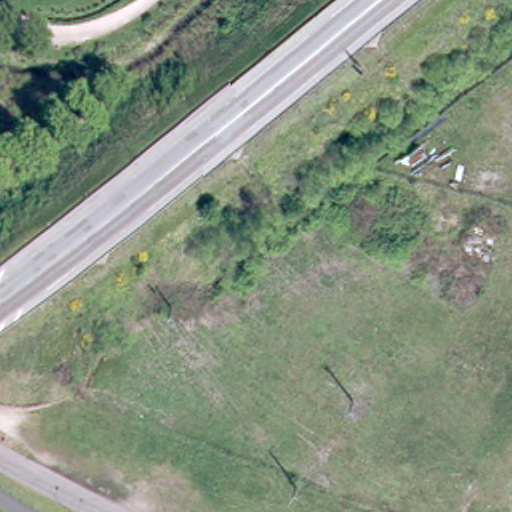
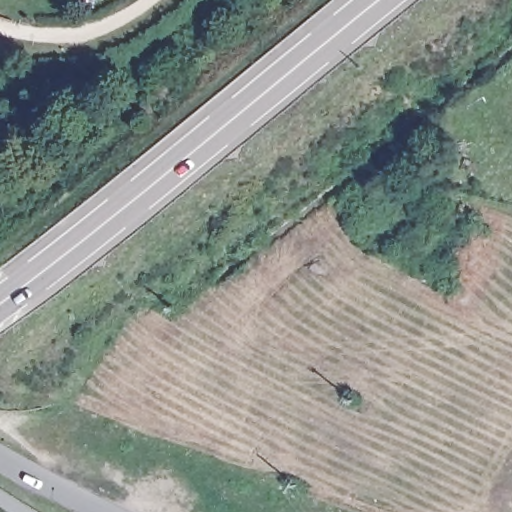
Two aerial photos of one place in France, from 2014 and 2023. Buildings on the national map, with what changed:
[]

